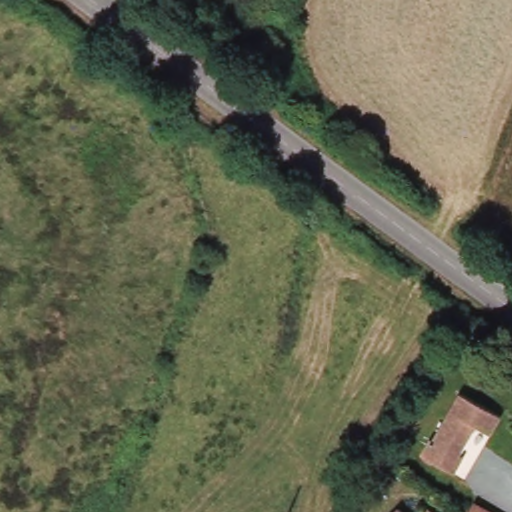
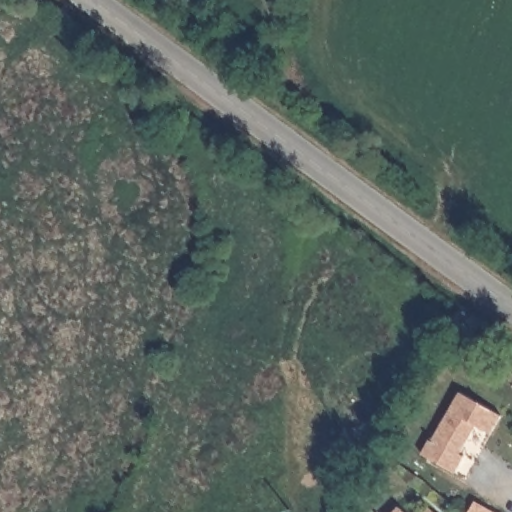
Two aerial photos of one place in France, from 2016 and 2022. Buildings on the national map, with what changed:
unchanged [(423,433),(428,436),(457,390),(495,412),(484,431),(470,422),(455,449),(459,452),(450,468),(416,450),(423,433)]
unchanged [(485,512),(465,512),(471,504),(485,512)]
unchanged [(435,512),(425,512),(430,507),(435,512)]
unchanged [(404,512),(395,512),(399,508),(404,512)]

